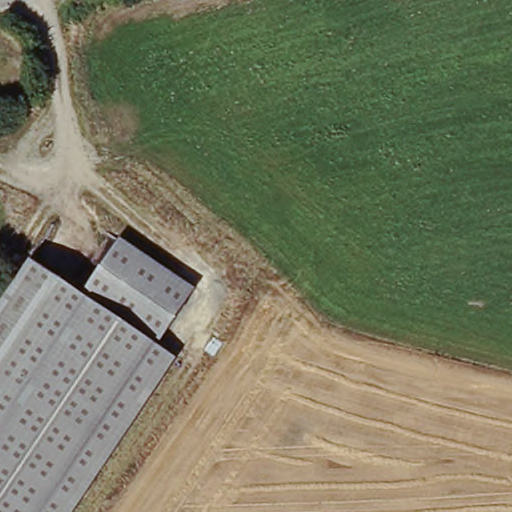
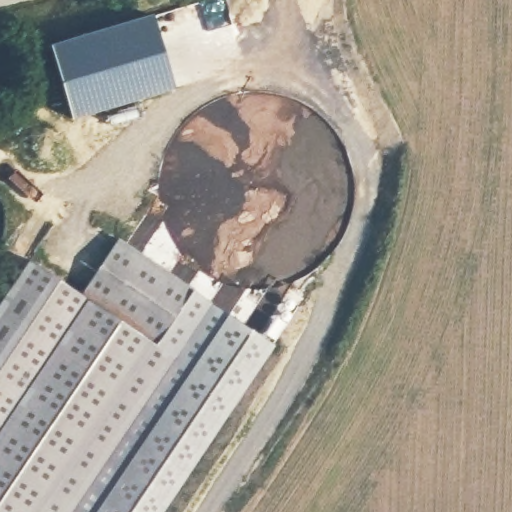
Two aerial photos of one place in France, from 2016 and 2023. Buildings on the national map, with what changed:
unchanged [(156,340),(175,352),(69,512),(0,512),(0,301),(29,258),(82,295),(121,235),(192,284),(156,340)]
new [(156,340),(192,284),(275,344),(163,512),(69,512),(175,352),(156,340)]

